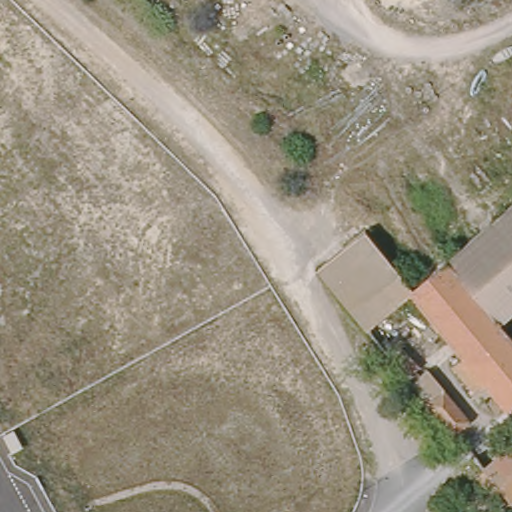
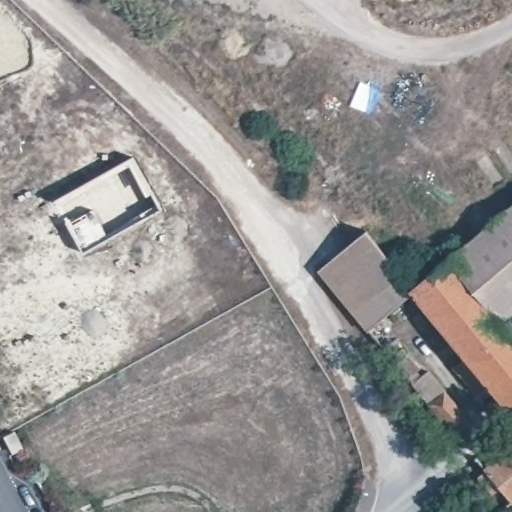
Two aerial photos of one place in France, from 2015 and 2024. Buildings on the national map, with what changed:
new [(132,157),(158,207),(82,252),(53,201),(132,157)]
unchanged [(450,263),(512,211),(512,319),(503,326),(450,263)]
unchanged [(414,293),(412,295),(413,297),(368,336),(318,276),(366,235),(414,293)]
unchanged [(497,401),(488,390),(477,400),(455,372),(466,363),(413,297),(412,295),(414,293),(450,263),(502,327),(503,326),(512,338),(512,407),(506,412),(495,421),(486,410),(497,401)]
unchanged [(467,422),(451,435),(408,385),(424,371),(467,422)]
unchanged [(498,495),(483,476),(512,451),(512,497),(505,489),(498,495)]

